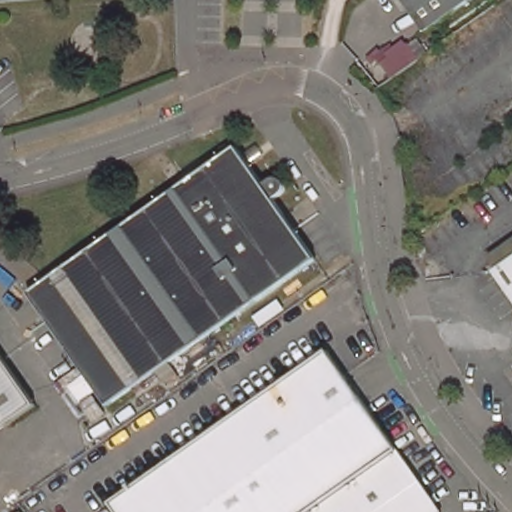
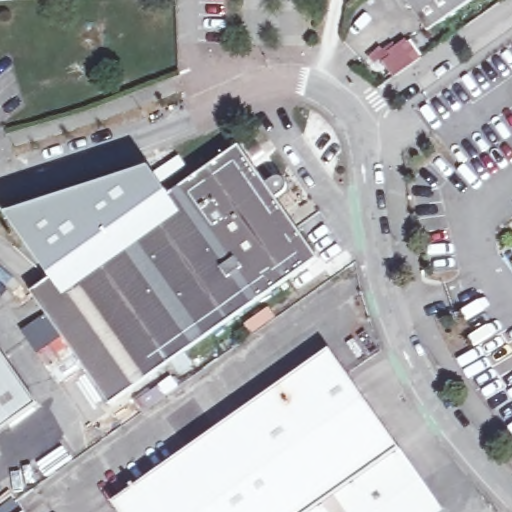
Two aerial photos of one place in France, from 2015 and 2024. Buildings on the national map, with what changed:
unchanged [(0,3),(0,0),(36,0),(0,3)]
unchanged [(427,28),(408,0),(468,0),(427,28)]
unchanged [(399,75),(386,58),(413,40),(424,56),(399,75)]
unchanged [(272,177),(273,177),(274,177),(275,177),(276,177),(277,177),(278,178),(280,179),(281,180),(281,181),(282,182),(283,182),(283,183),(283,184),(284,185),(285,186),(285,187),(285,188),(285,189),(285,190),(285,191),(285,192),(284,193),(284,194),(283,194),(283,195),(282,196),(281,197),(275,201),(315,260),(110,402),(32,292),(51,279),(90,252),(168,198),(240,149),(244,154),(251,149),(259,160),(252,165),(262,181),(267,178),(269,177),(270,177),(271,177),(272,177)]
new [(5,216),(149,168),(168,198),(90,252),(51,279),(5,216)]
demolished [(512,265),(512,300),(495,277),(512,265)]
new [(269,309),(275,318),(253,333),(247,324),(269,309)]
unchanged [(40,405),(0,433),(0,352),(40,405)]
unchanged [(444,512),(122,512),(116,503),(329,352),(402,451),(445,511),(444,512)]

